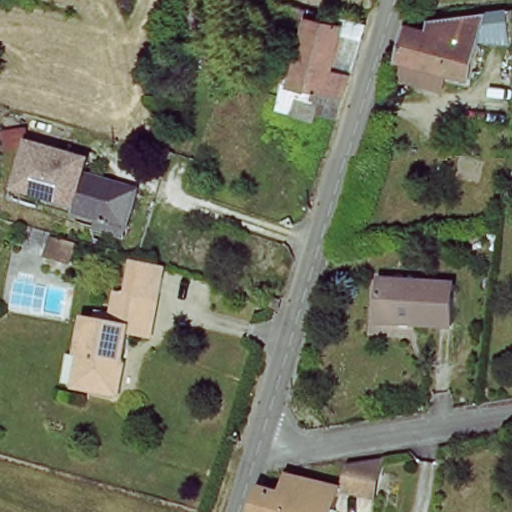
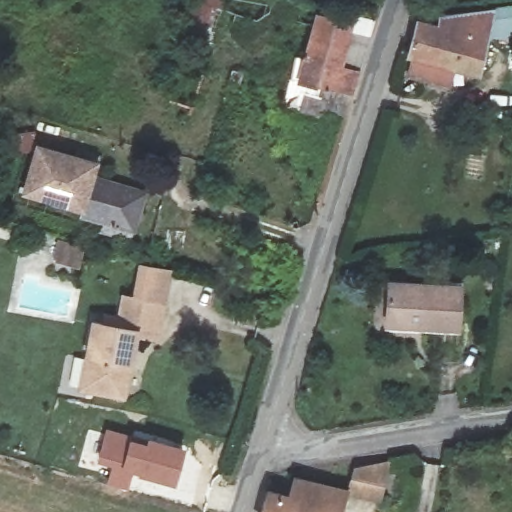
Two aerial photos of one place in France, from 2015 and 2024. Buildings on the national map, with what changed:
new [(212,26),(217,27),(208,46),(193,39),(192,42),(180,36),(193,9),(194,0),(224,0),(212,26)]
unchanged [(357,17),(370,20),(365,35),(364,41),(356,67),(350,85),(347,92),(340,117),(320,112),(316,111),(315,117),(278,106),(287,75),(292,59),(300,62),(308,31),(310,27),(296,24),(265,16),(270,0),(286,0),(301,4),(346,15),(357,17)]
unchanged [(407,77),(411,59),(405,57),(412,32),(434,30),(433,20),(512,8),(512,30),(490,27),(475,75),(451,69),(447,87),(407,77)]
unchanged [(10,146),(10,133),(32,132),(30,145),(10,146)]
unchanged [(142,189),(132,227),(79,213),(80,207),(22,190),(35,144),(92,160),(88,174),(142,189)]
unchanged [(60,249),(85,255),(80,275),(55,268),(60,249)]
unchanged [(80,362),(87,325),(112,329),(117,298),(127,300),(133,267),(162,272),(157,305),(150,341),(130,337),(119,401),(83,395),(88,363),(80,362)]
unchanged [(385,287),(459,288),(458,331),(422,331),(422,326),(384,326),(385,287)]
new [(104,426),(146,437),(147,435),(186,447),(174,487),(134,477),(130,492),(105,486),(110,468),(93,465),(104,426)]
unchanged [(363,466),(397,462),(387,498),(355,490),(363,466)]
unchanged [(262,512),(270,486),(292,492),(293,489),(299,473),(355,490),(347,512),(262,512)]

